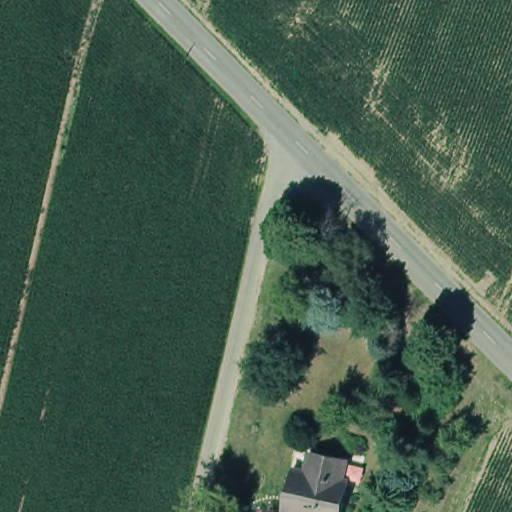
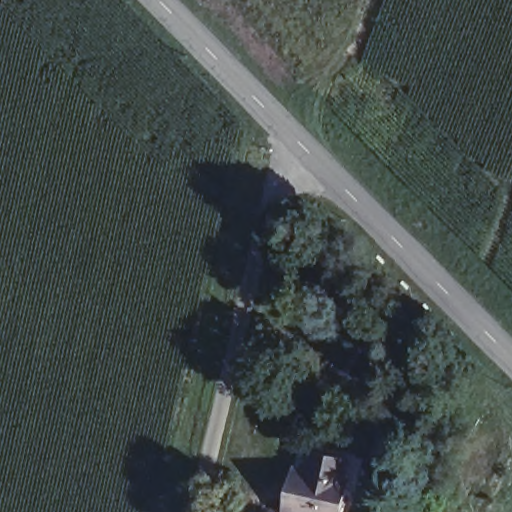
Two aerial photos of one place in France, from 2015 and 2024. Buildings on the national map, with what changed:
unchanged [(291,466),(297,467),(302,446),(345,456),(332,512),(293,512),(281,510),(274,508),(284,464),(291,466)]

